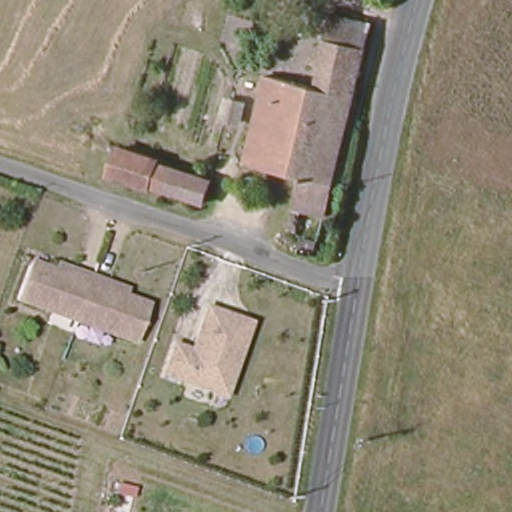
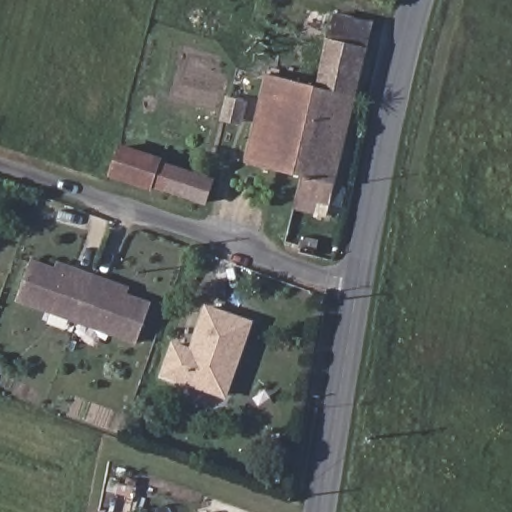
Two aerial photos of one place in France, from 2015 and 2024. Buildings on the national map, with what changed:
unchanged [(331,10),(372,20),(368,43),(327,33),(331,10)]
unchanged [(310,207),(302,205),(297,231),(289,228),(301,175),(324,84),(325,77),(318,75),(327,33),(368,43),(335,176),(327,211),(310,207)]
unchanged [(233,159),(239,130),(253,133),(267,71),(324,84),(301,175),(233,159)]
unchanged [(207,205),(154,184),(149,195),(106,178),(118,140),(160,156),(216,177),(207,205)]
unchanged [(25,266),(49,275),(53,264),(75,273),(89,278),(74,324),(14,302),(25,266)]
unchanged [(102,283),(121,289),(119,299),(143,307),(131,344),(74,324),(89,278),(102,283)]
unchanged [(221,390),(170,373),(179,343),(197,349),(212,304),(255,317),(243,358),(230,393),(221,390)]
unchanged [(303,311),(318,316),(315,331),(299,326),(303,311)]

